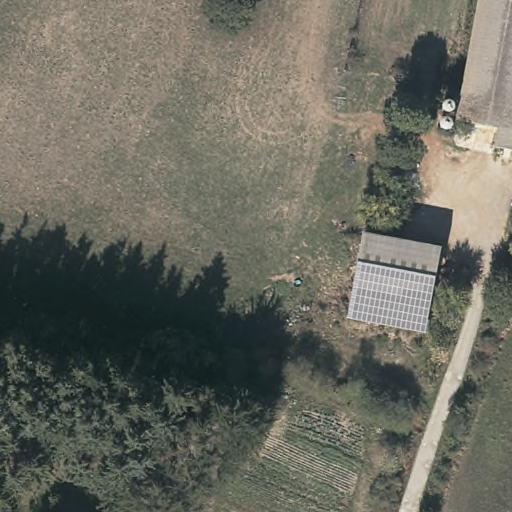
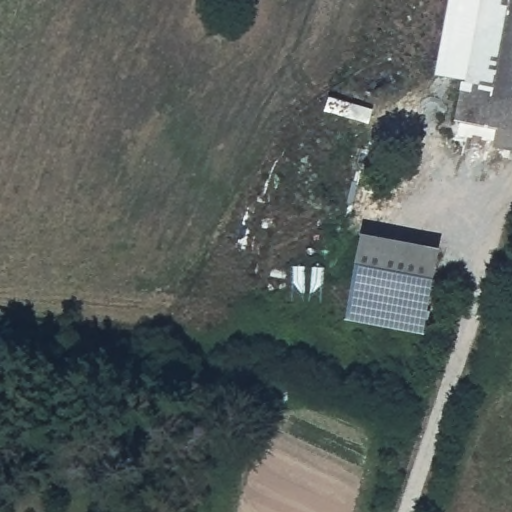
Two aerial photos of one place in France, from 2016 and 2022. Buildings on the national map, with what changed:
new [(449,0),(481,0),(466,81),(436,75),(449,0)]
unchanged [(495,140),(498,121),(461,115),(463,98),(481,0),(512,0),(512,142),(495,140)]
unchanged [(444,248),(428,334),(348,319),(363,233),(444,248)]
unchanged [(240,377),(230,398),(219,393),(229,371),(240,377)]

